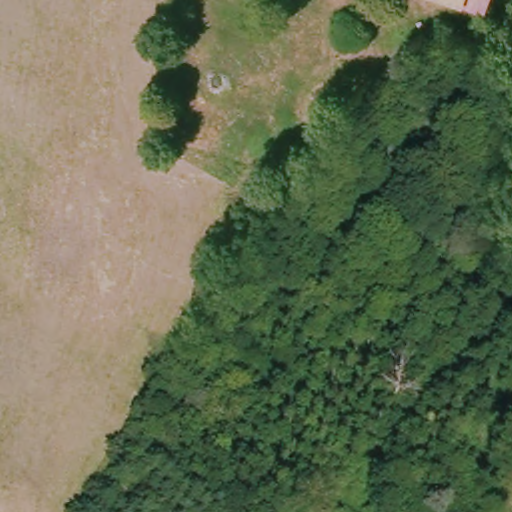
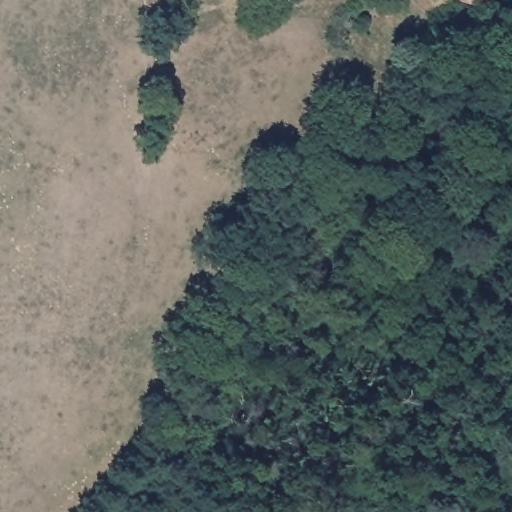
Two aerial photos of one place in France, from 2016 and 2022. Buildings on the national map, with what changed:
unchanged [(452,0),(452,2),(447,0),(452,0)]
unchanged [(482,0),(479,11),(452,2),(452,0),(482,0)]

